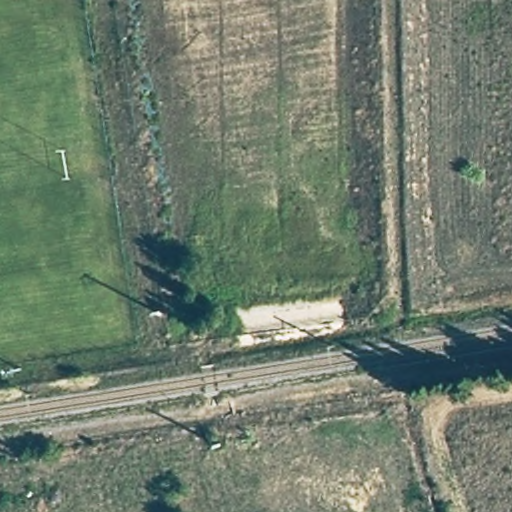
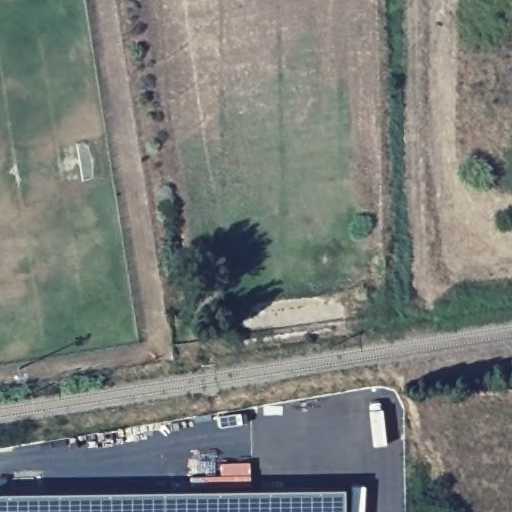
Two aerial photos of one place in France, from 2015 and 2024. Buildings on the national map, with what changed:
new [(345,512),(0,512),(0,493),(344,489),(345,512)]

